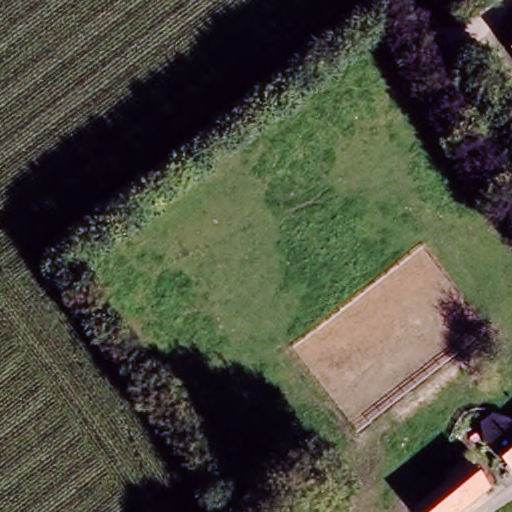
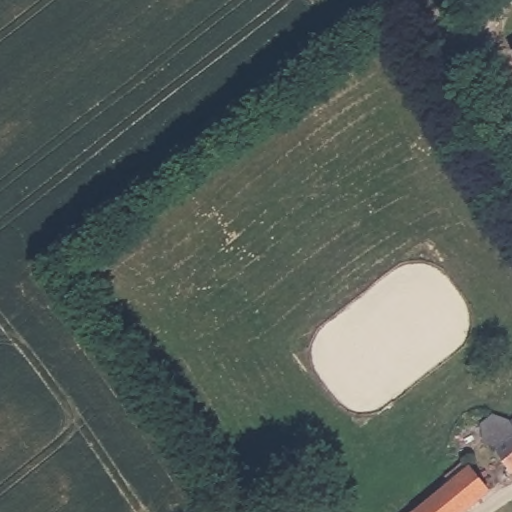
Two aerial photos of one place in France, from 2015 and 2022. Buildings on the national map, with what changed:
unchanged [(512,35),(512,60),(500,45),(512,35)]
unchanged [(504,480),(485,460),(482,466),(470,450),(480,445),(469,432),(495,415),(507,425),(512,421),(512,474),(504,480)]
unchanged [(445,486),(440,481),(461,464),(487,495),(468,512),(414,512),(445,486)]

